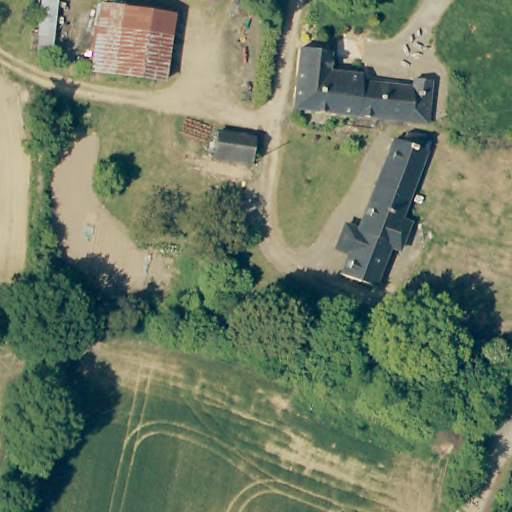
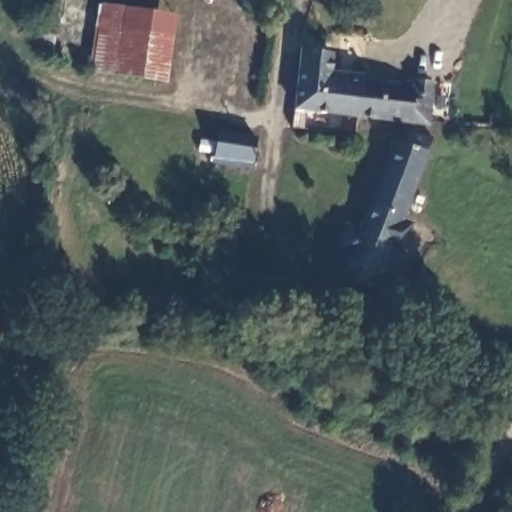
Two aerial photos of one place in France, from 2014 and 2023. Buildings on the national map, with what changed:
unchanged [(92,68),(101,4),(122,7),(114,71),(92,68)]
unchanged [(114,71),(122,7),(172,14),(164,79),(144,75),(114,71)]
unchanged [(303,51),(335,56),(333,72),(367,77),(366,84),(417,92),(419,84),(436,86),(429,129),(295,110),(303,51)]
unchanged [(215,164),(216,155),(220,127),(257,131),(253,160),(235,158),(234,166),(215,164)]
unchanged [(406,144),(410,135),(432,145),(401,216),(410,220),(399,245),(390,242),(373,280),(342,268),(351,248),(342,244),(340,238),(345,224),(352,222),(360,225),(396,140),(406,144)]

